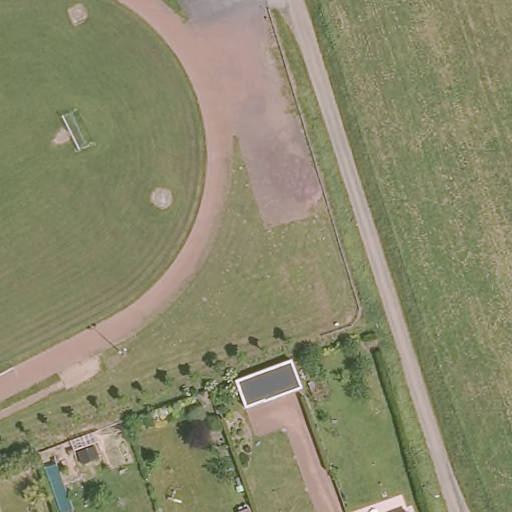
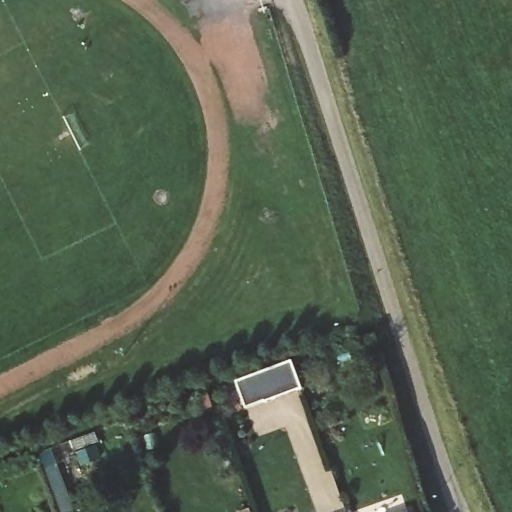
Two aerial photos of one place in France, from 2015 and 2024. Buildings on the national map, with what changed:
unchanged [(292,363),(303,387),(246,412),(234,379),(292,363)]

